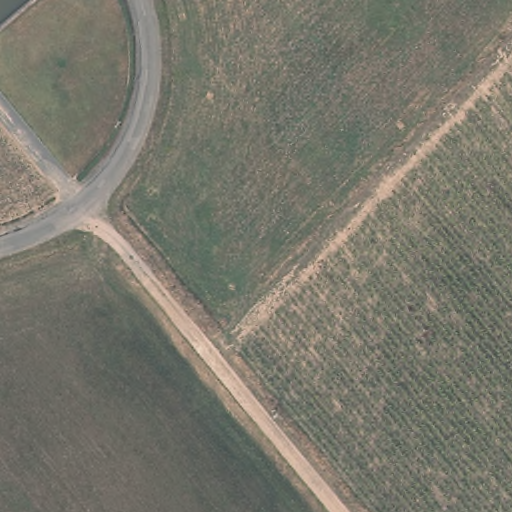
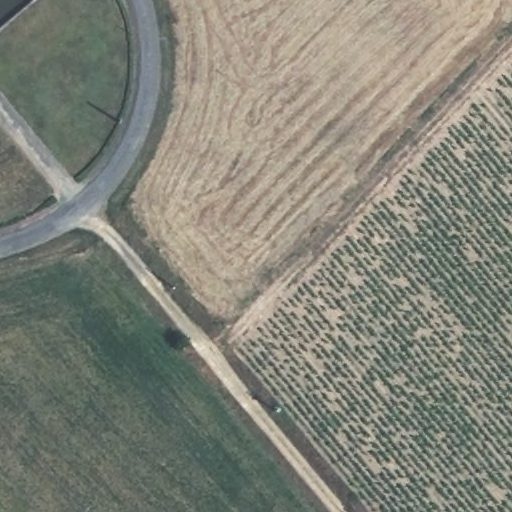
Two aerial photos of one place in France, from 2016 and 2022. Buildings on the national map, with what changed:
[]

